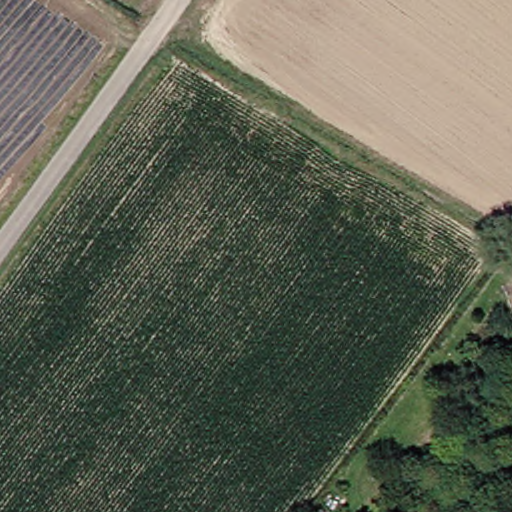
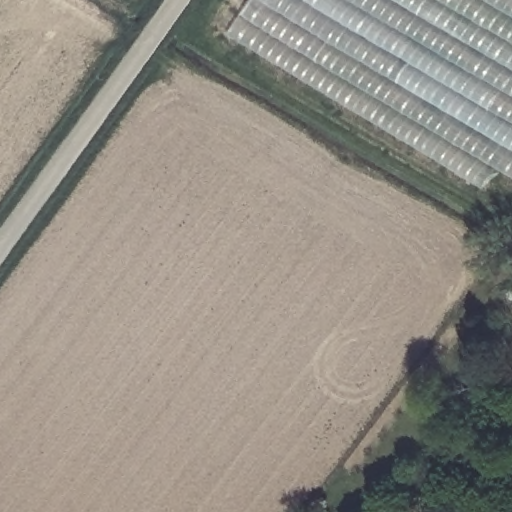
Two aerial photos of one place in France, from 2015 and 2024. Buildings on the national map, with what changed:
new [(512,0),(512,177),(499,169),(485,189),(226,37),(252,0),(512,0)]

